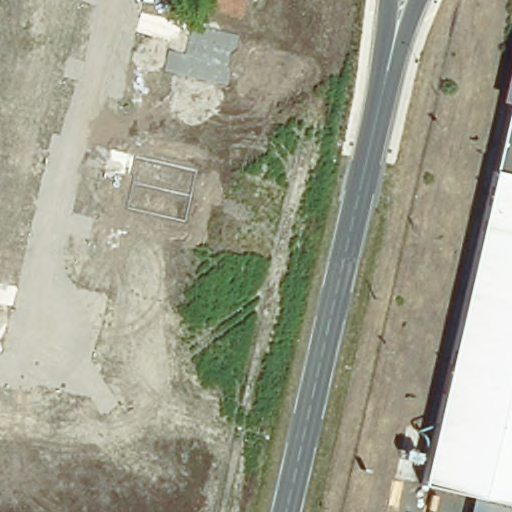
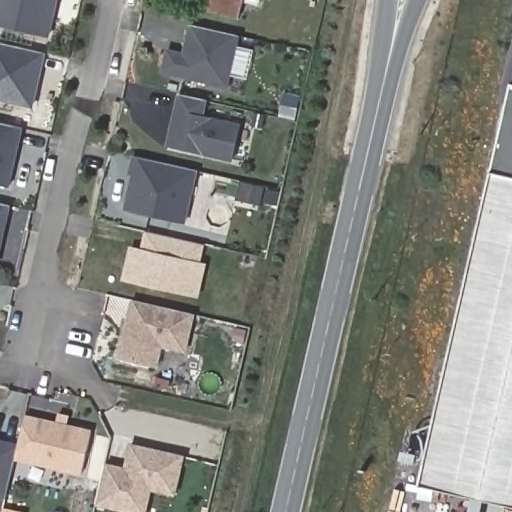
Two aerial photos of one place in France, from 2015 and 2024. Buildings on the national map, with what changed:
new [(0,23),(0,0),(55,0),(47,34),(0,23)]
unchanged [(208,9),(211,0),(242,0),(238,17),(208,9)]
new [(220,85),(156,70),(161,49),(181,54),(188,24),(232,34),(220,85)]
new [(0,100),(0,43),(43,53),(30,107),(0,100)]
unchanged [(510,507),(443,491),(416,485),(512,65),(512,507),(510,507)]
new [(229,160),(165,145),(177,94),(203,100),(199,118),(236,126),(229,160)]
new [(0,186),(0,124),(20,129),(6,188),(0,186)]
new [(185,220),(126,207),(133,174),(128,173),(132,157),(196,172),(185,220)]
new [(277,207),(251,201),(254,184),(281,191),(277,207)]
new [(0,205),(8,207),(0,239),(0,205)]
new [(133,249),(141,251),(145,232),(205,246),(200,264),(204,265),(196,298),(125,282),(133,249)]
new [(180,362),(156,356),(151,378),(114,369),(130,302),(190,315),(180,362)]
new [(81,476),(14,460),(23,419),(91,434),(81,476)]
new [(0,500),(0,444),(16,448),(4,501),(0,500)]
new [(106,466),(126,470),(133,446),(185,458),(176,496),(152,490),(147,512),(126,512),(98,506),(106,466)]

